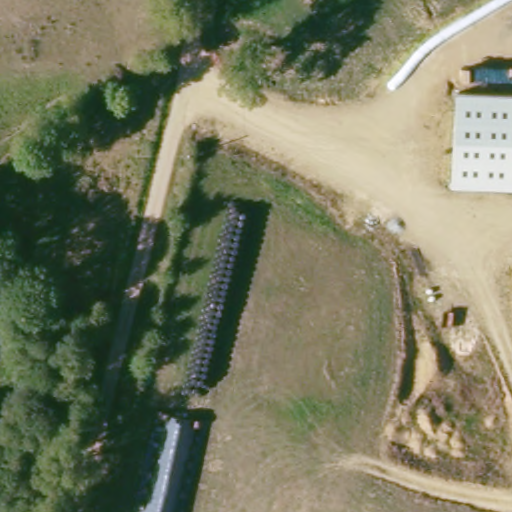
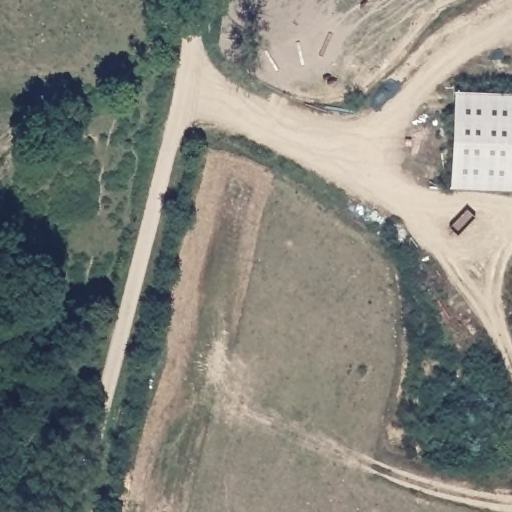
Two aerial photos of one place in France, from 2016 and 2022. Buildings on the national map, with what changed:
unchanged [(455,91),(512,94),(512,190),(451,188),(455,91)]

